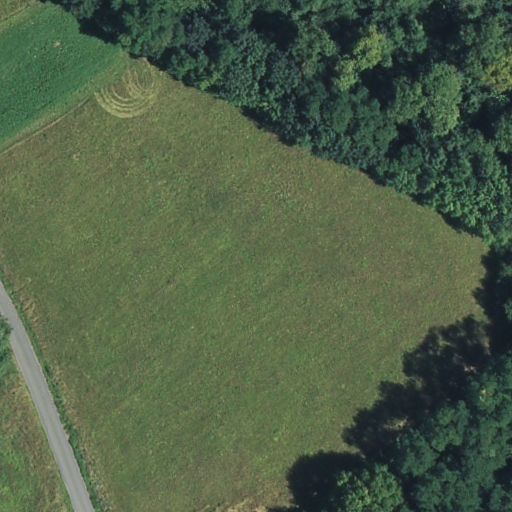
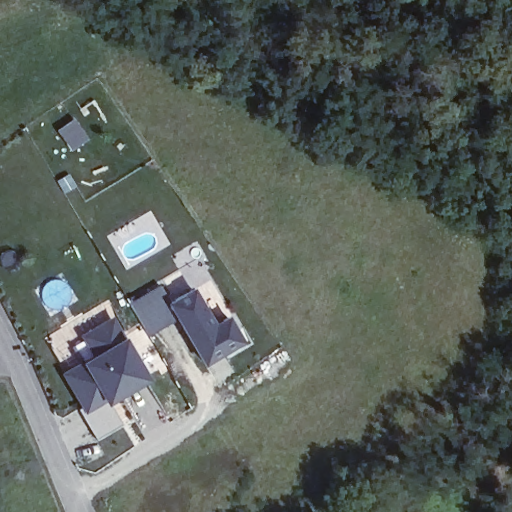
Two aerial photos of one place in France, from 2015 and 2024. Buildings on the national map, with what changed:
new [(212,321),(227,312),(243,342),(204,365),(165,302),(192,285),(212,321)]
new [(108,403),(120,423),(97,439),(77,408),(81,405),(62,373),(81,361),(91,355),(80,336),(112,317),(122,335),(148,378),(108,403)]

